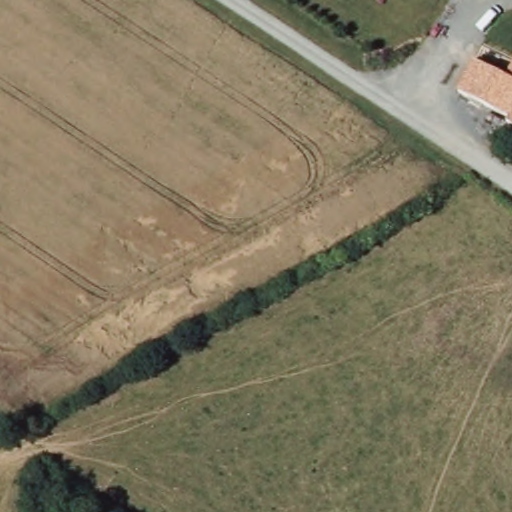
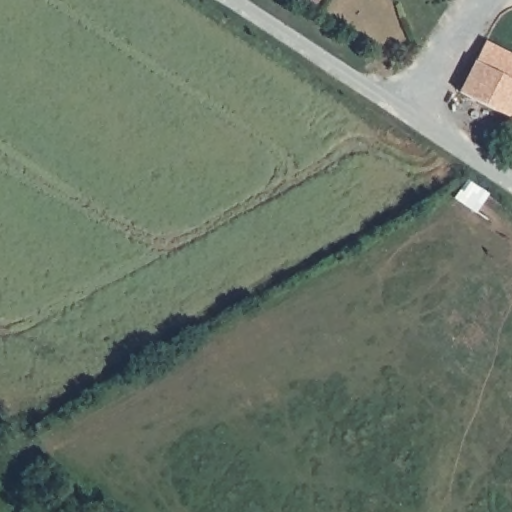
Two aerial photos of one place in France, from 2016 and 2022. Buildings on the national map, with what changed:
unchanged [(472,62),(506,77),(512,66),(512,126),(507,125),(509,120),(458,92),(472,62)]

